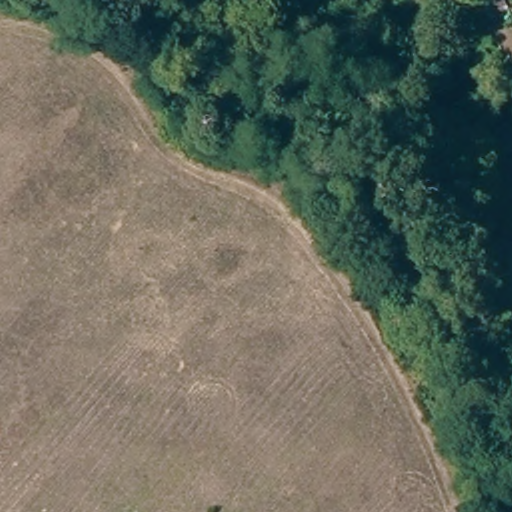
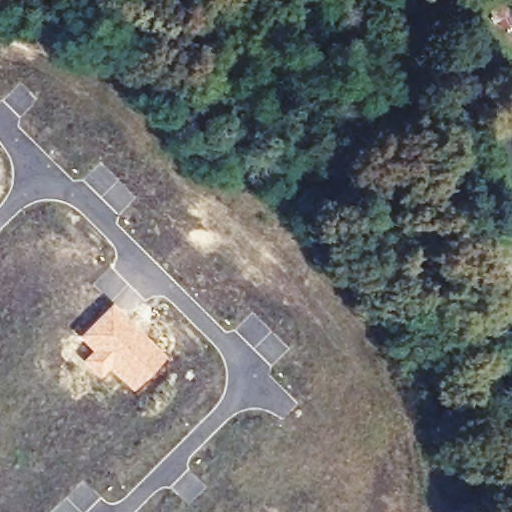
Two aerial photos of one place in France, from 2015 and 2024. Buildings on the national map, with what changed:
new [(98,377),(79,360),(89,350),(75,337),(110,302),(165,356),(131,391),(108,367),(98,377)]

